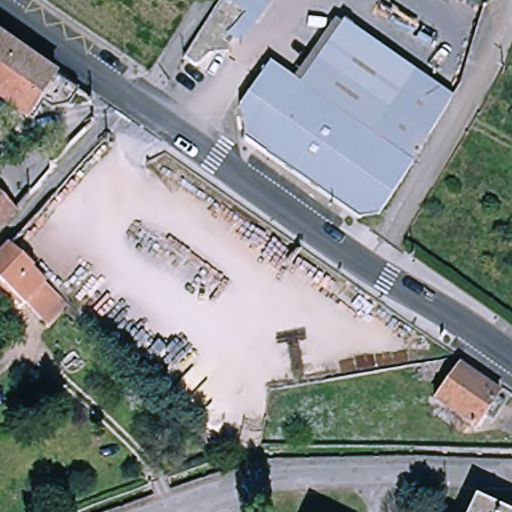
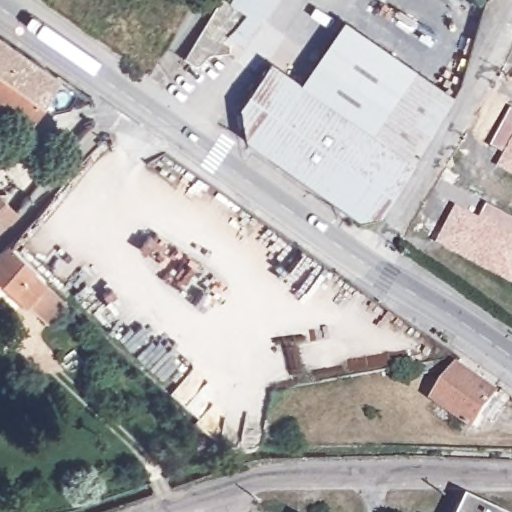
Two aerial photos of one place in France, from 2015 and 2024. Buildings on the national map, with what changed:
unchanged [(232,0),(238,5),(241,0),(276,0),(247,43),(232,36),(232,54),(212,55),(200,75),(184,66),(225,0),(232,0)]
unchanged [(275,58),(304,81),(350,15),(458,94),(381,215),(361,217),(248,138),(243,103),(275,58)]
unchanged [(92,94),(72,117),(43,99),(33,114),(4,95),(0,101),(0,31),(92,94)]
new [(505,156),(492,149),(512,111),(512,176),(499,169),(505,156)]
unchanged [(16,210),(0,227),(0,195),(16,210)]
new [(459,207),(482,219),(490,206),(512,218),(512,283),(438,246),(459,207)]
unchanged [(43,275),(75,302),(60,321),(37,301),(31,306),(0,275),(0,251),(10,242),(43,275)]
unchanged [(490,418),(484,426),(433,395),(456,362),(506,396),(512,400),(512,405),(498,423),(490,418)]
unchanged [(482,496),(512,509),(512,512),(474,512),(482,496)]

